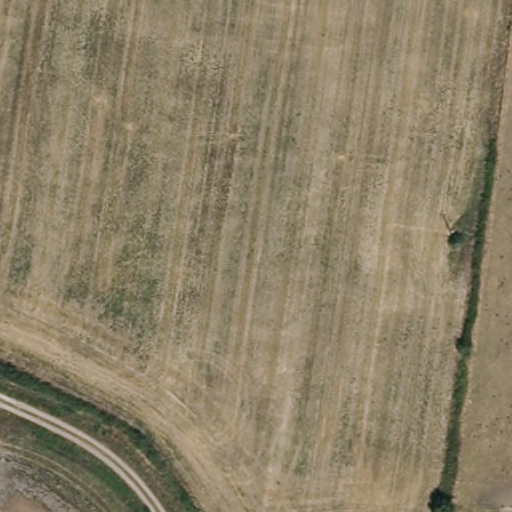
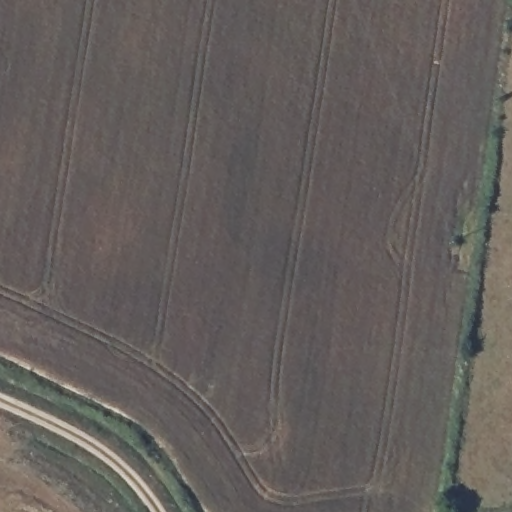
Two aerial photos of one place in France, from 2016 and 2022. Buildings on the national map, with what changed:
[]

